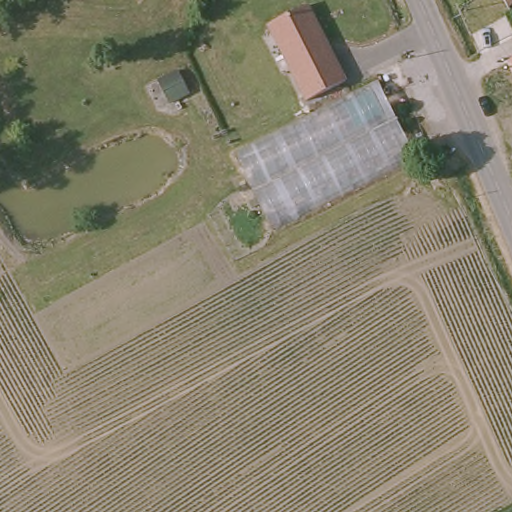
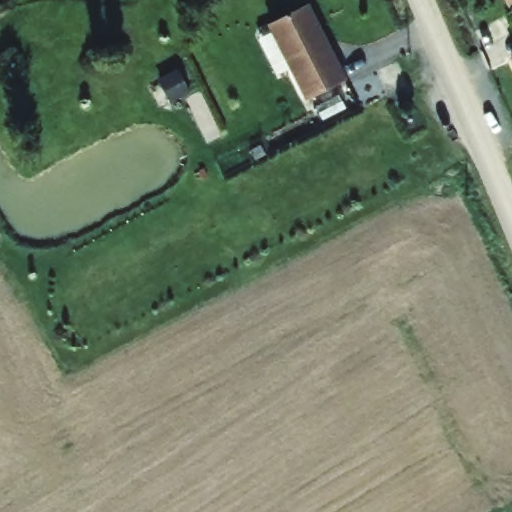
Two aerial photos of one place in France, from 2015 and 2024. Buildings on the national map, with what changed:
unchanged [(512,5),(512,25),(500,32),(484,0),(510,0),(512,5)]
new [(307,4),(345,80),(307,99),(269,23),(307,4)]
demolished [(267,225),(235,150),(382,81),(420,152),(267,225)]

